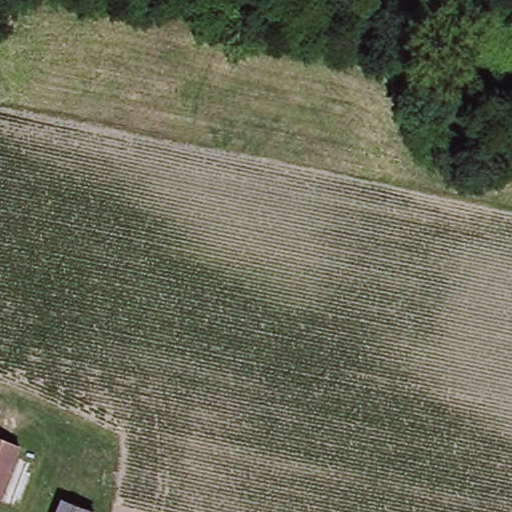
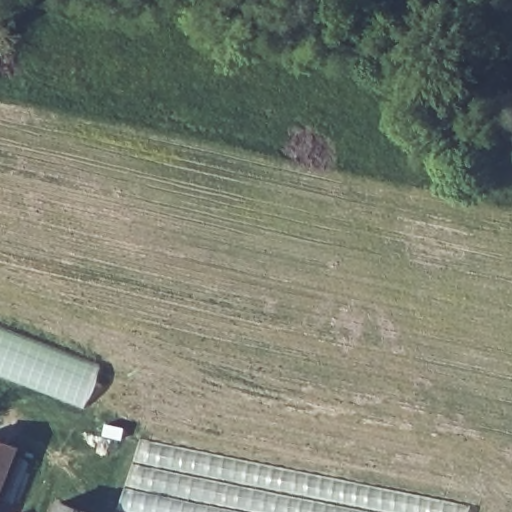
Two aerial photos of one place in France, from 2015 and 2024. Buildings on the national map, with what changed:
new [(140,438),(212,455),(468,507),(467,512),(115,512),(140,438)]
unchanged [(17,449),(0,491),(0,442),(17,449)]
unchanged [(83,512),(56,512),(59,504),(83,512)]

